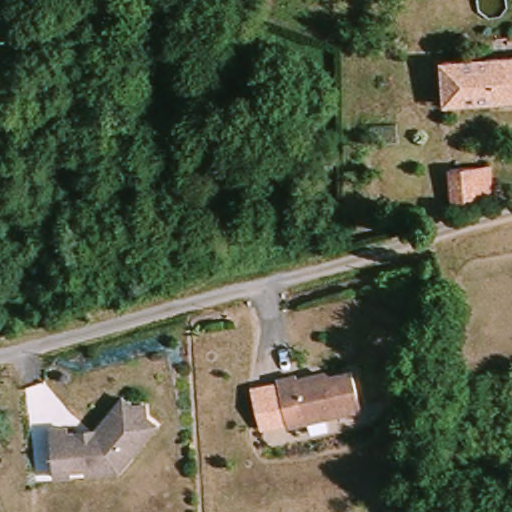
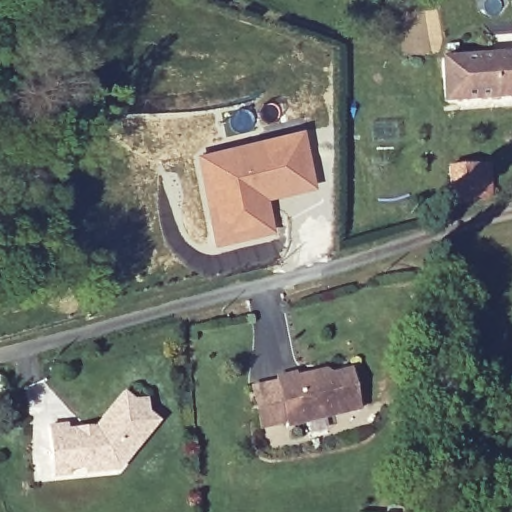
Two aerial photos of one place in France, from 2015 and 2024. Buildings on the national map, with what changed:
unchanged [(445,103),(442,61),(512,55),(512,97),(445,103)]
new [(301,129),(316,189),(268,202),(277,233),(215,249),(193,154),(301,129)]
unchanged [(465,203),(452,204),(450,169),(488,167),(490,195),(465,203)]
unchanged [(366,414),(293,431),(282,384),(301,379),(302,383),(318,379),(324,383),(357,375),(366,414)]
unchanged [(57,465),(54,433),(73,431),(73,437),(81,436),(101,435),(129,401),(138,408),(151,407),(152,419),(162,428),(123,475),(110,476),(59,481),(57,465)]

